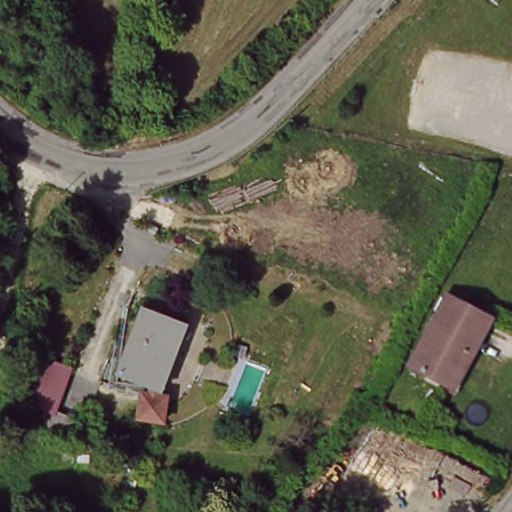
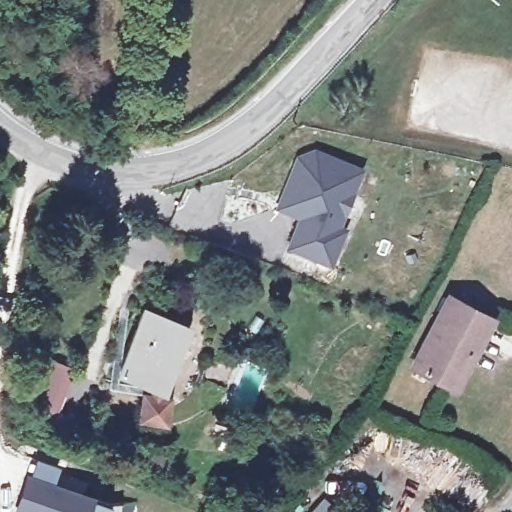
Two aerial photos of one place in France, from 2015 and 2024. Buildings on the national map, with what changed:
new [(314,151),(346,163),(361,169),(354,185),(338,226),(344,229),(330,264),(290,248),(302,218),(278,208),(283,194),(298,157),(314,151)]
unchanged [(491,321),(473,357),(464,354),(444,388),(416,373),(453,303),(491,321)]
unchanged [(172,325),(151,391),(118,381),(139,314),(172,325)]
unchanged [(68,372),(54,409),(51,417),(25,407),(19,405),(36,360),(68,372)]
unchanged [(156,402),(154,421),(131,420),(133,400),(156,402)]
unchanged [(51,417),(54,409),(78,416),(69,439),(20,423),(25,407),(51,417)]
new [(108,512),(18,512),(16,511),(27,477),(110,504),(108,512)]

